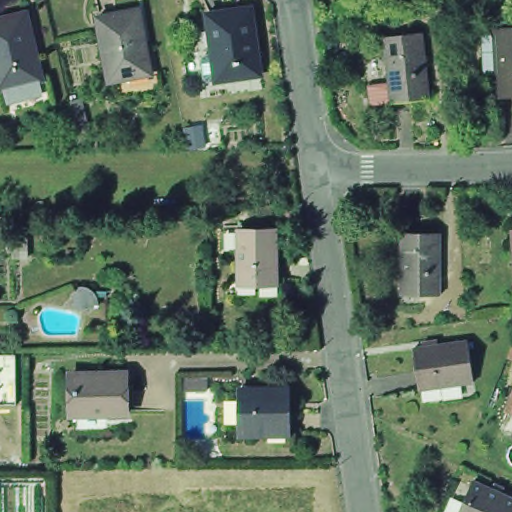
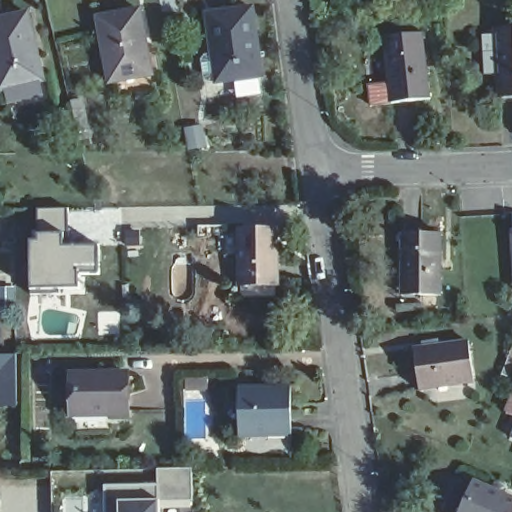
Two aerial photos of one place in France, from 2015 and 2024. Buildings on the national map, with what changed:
unchanged [(207,79),(203,61),(207,56),(215,55),(208,15),(253,9),(263,75),(218,83),(218,81),(211,83),(207,79)]
unchanged [(1,90),(0,87),(0,22),(28,15),(45,80),(1,90)]
unchanged [(148,80),(107,88),(94,24),(137,16),(148,80)]
unchanged [(485,32),(500,31),(500,28),(512,27),(512,92),(503,93),(502,70),(487,71),(485,32)]
unchanged [(422,34),(427,99),(390,103),(382,39),(422,34)]
new [(35,210),(70,209),(70,244),(95,245),(96,274),(75,274),(75,292),(27,293),(26,242),(35,242),(35,232),(35,210)]
unchanged [(276,278),(242,278),(240,228),(276,228),(276,278)]
demolished [(8,230),(10,230),(22,230),(22,260),(11,260),(9,260),(8,230)]
unchanged [(443,238),(442,296),(402,295),(403,236),(443,238)]
unchanged [(416,350),(470,343),(475,383),(422,391),(416,350)]
new [(17,354),(17,406),(0,406),(0,354),(17,354)]
unchanged [(129,374),(129,415),(72,416),(71,374),(129,374)]
unchanged [(240,394),(283,394),(284,416),(292,416),(292,438),(241,438),(240,394)]
unchanged [(213,399),(213,410),(191,411),(191,399),(213,399)]
new [(155,484),(155,469),(192,468),(192,503),(160,502),(160,512),(102,512),(102,486),(155,484)]
unchanged [(472,507),(467,504),(475,486),(494,494),(497,487),(507,491),(503,499),(512,502),(512,512),(470,512),(472,507)]

